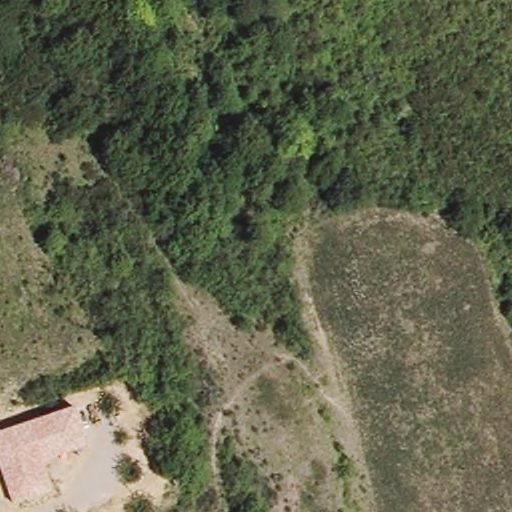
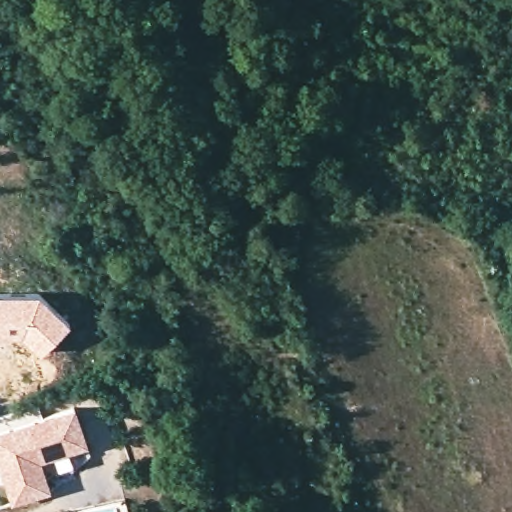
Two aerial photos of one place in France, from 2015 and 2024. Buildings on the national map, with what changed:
new [(37,291),(70,322),(40,353),(20,337),(0,337),(0,292),(37,291)]
unchanged [(75,405),(89,446),(42,462),(51,492),(12,506),(0,471),(0,431),(75,405)]

